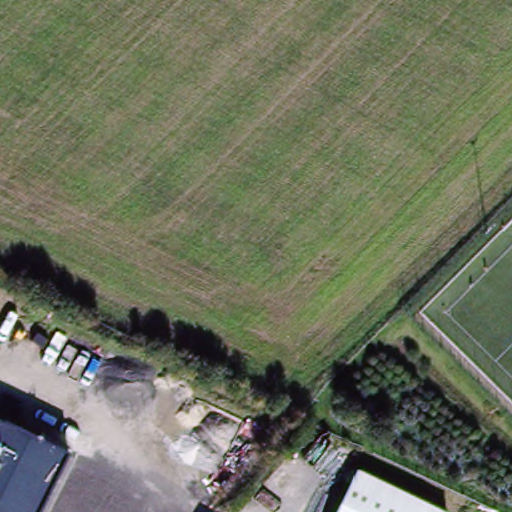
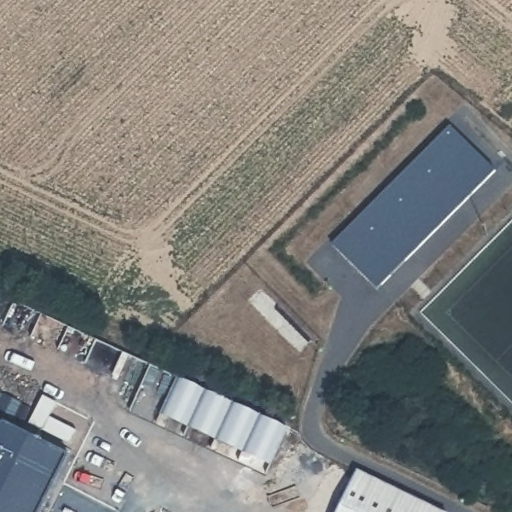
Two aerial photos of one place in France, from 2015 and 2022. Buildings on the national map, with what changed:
new [(450,126),(496,172),(377,290),(332,245),(450,126)]
unchanged [(70,456),(41,512),(0,512),(0,423),(70,456)]
unchanged [(447,512),(341,512),(361,469),(447,512)]

